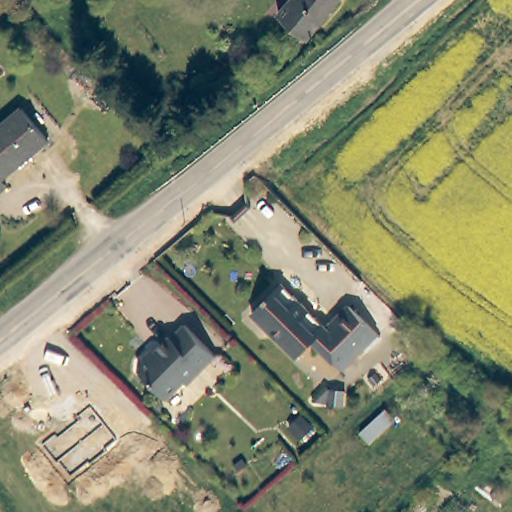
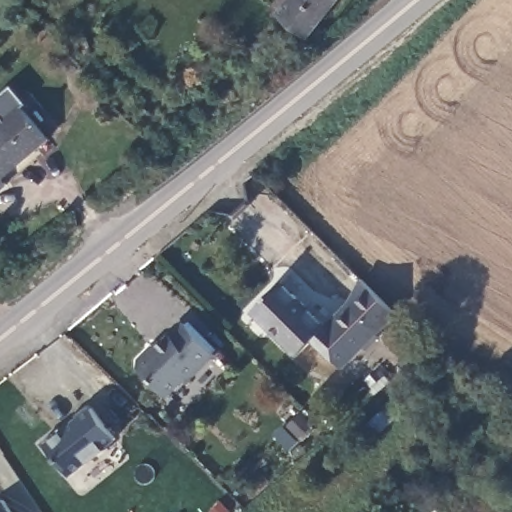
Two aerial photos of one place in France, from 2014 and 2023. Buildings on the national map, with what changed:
unchanged [(276,18),(289,0),(294,1),(294,0),(338,0),(305,39),(276,18)]
unchanged [(46,140),(1,177),(6,183),(0,188),(0,122),(18,106),(46,140)]
unchanged [(252,316),(281,287),(327,333),(323,337),(314,346),(310,351),(298,363),(252,316)]
unchanged [(323,337),(327,333),(350,310),(376,337),(340,373),(314,346),(323,337)]
unchanged [(187,388),(184,385),(166,403),(138,376),(139,366),(147,357),(152,358),(168,341),(173,342),(184,330),(215,359),(187,388)]
new [(91,406),(116,439),(69,478),(46,445),(91,406)]

